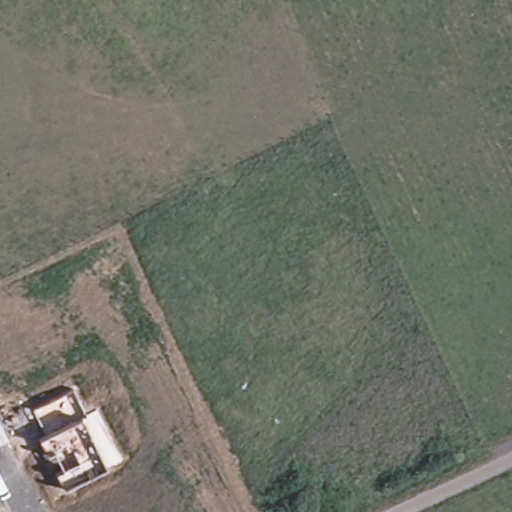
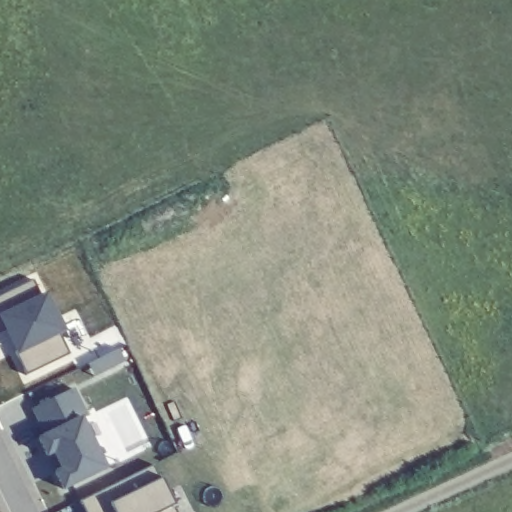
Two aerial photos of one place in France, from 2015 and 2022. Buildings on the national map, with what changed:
new [(35,280),(41,295),(50,292),(67,331),(60,334),(70,353),(26,373),(7,329),(0,332),(0,295),(35,280)]
unchanged [(39,439),(46,436),(33,411),(74,390),(87,417),(83,419),(105,469),(65,489),(39,439)]
new [(154,464),(162,480),(174,505),(177,512),(87,512),(81,500),(154,464)]

